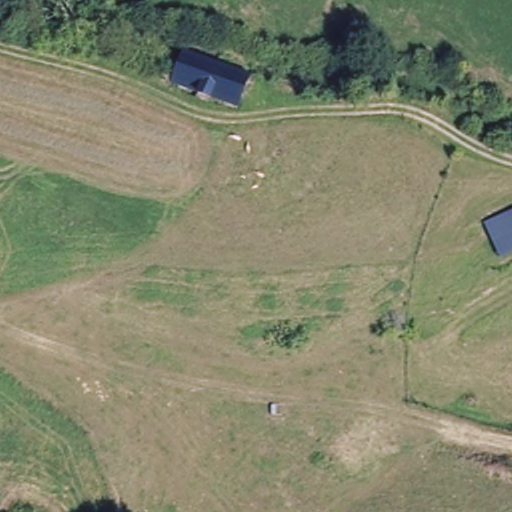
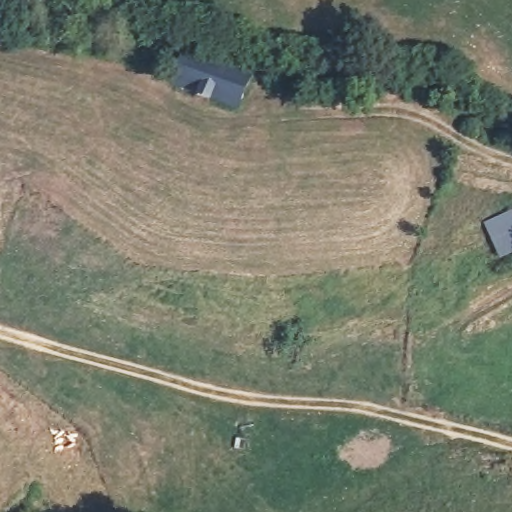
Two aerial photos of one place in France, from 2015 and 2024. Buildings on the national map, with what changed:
unchanged [(184,48),(256,76),(242,109),(169,79),(176,64),(184,48)]
unchanged [(481,219),(512,205),(512,252),(498,259),(481,219)]

